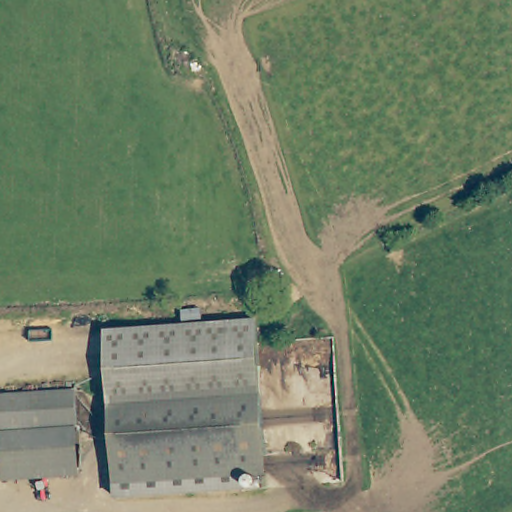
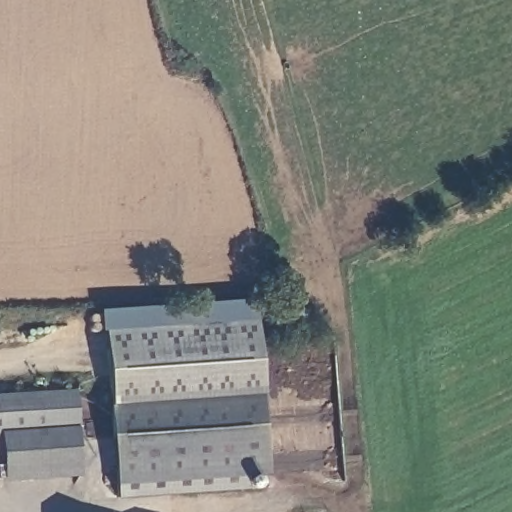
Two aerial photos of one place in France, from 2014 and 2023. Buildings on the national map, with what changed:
unchanged [(255,319),(265,472),(258,473),(260,487),(117,496),(106,329),(255,319)]
unchanged [(0,395),(77,389),(78,424),(0,431),(0,395)]
unchanged [(79,467),(3,472),(2,463),(0,437),(0,431),(78,424),(79,467)]
unchanged [(3,472),(4,479),(0,479),(0,437),(2,463),(3,472)]

